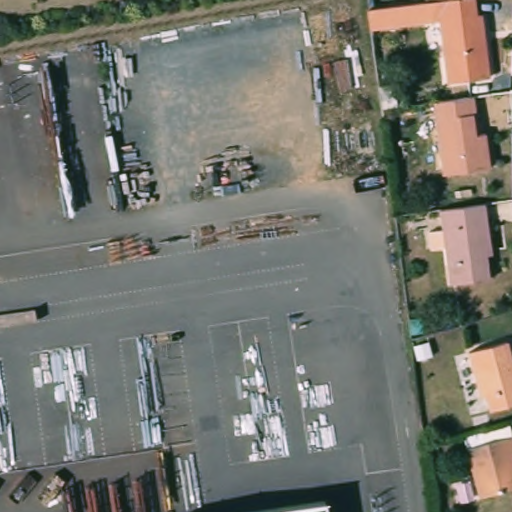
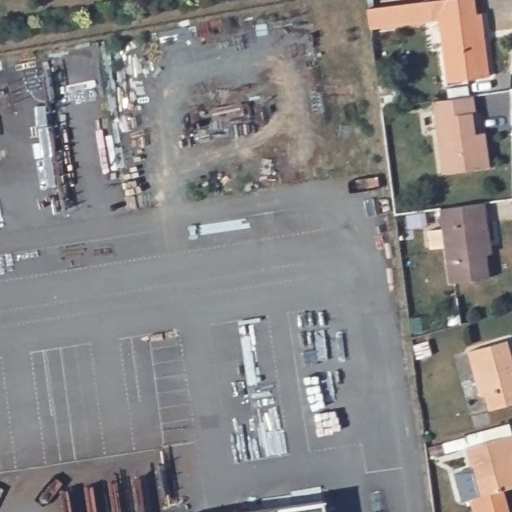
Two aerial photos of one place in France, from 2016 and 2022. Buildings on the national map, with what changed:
unchanged [(428,0),(431,20),(370,28),(367,9),(428,0)]
unchanged [(481,13),(488,75),(448,80),(440,20),(431,20),(428,0),(431,0),(475,0),(477,14),(481,13)]
unchanged [(477,134),(484,133),(487,167),(442,173),(432,101),(473,96),(477,134)]
unchanged [(491,242),(483,243),(489,282),(448,288),(443,246),(428,248),(427,230),(441,229),(437,209),(485,202),(491,242)]
unchanged [(512,365),(512,403),(487,410),(483,395),(477,396),(466,352),(505,341),(512,365)]
unchanged [(481,497),(467,448),(512,435),(512,489),(481,497)]
unchanged [(327,495),(330,512),(215,512),(327,495)]

